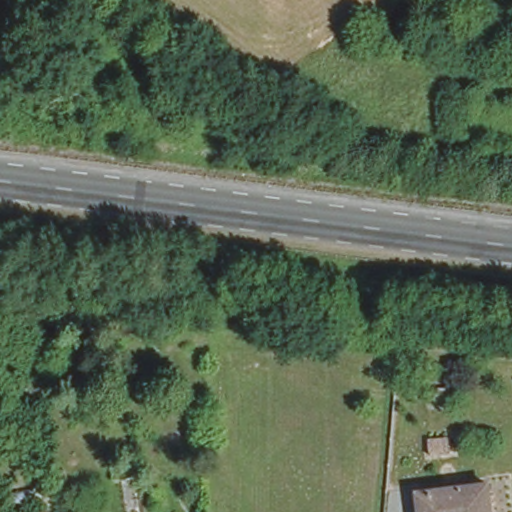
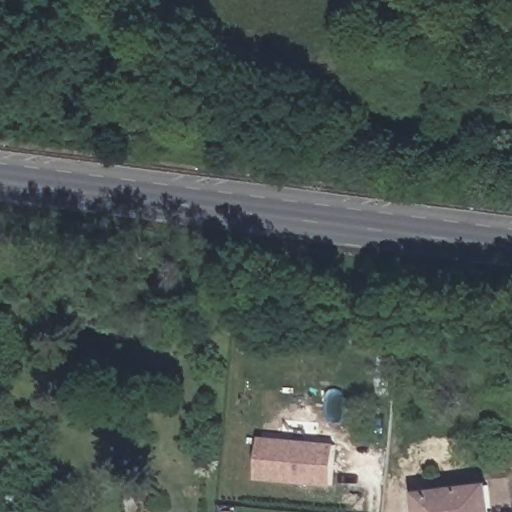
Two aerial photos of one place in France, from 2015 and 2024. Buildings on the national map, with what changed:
unchanged [(422,452),(420,433),(443,431),(445,450),(422,452)]
new [(256,478),(260,435),(336,442),(332,485),(256,478)]
unchanged [(482,468),(488,512),(410,512),(405,477),(482,468)]

